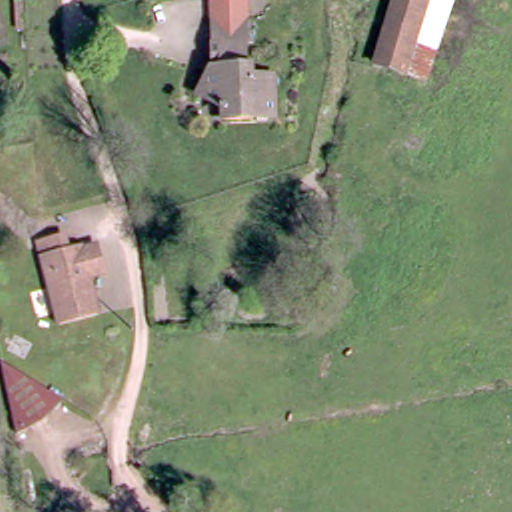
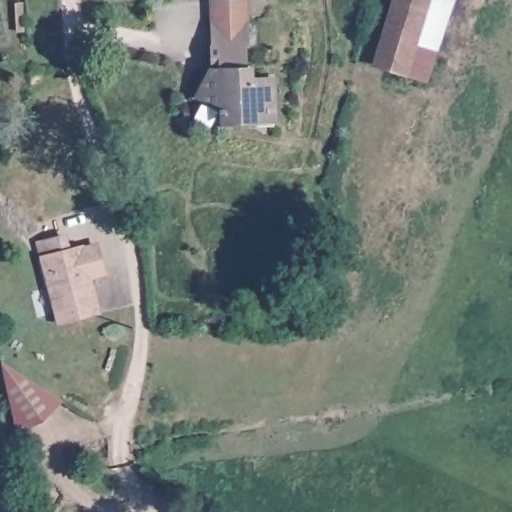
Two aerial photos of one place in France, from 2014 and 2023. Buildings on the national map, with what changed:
unchanged [(400,0),(456,0),(427,89),(377,73),(400,0)]
unchanged [(231,23),(233,19),(249,19),(250,47),(244,47),(245,71),(251,72),(251,84),(272,84),(275,122),(226,125),(225,116),(199,100),(212,72),(211,46),(211,22),(231,23)]
unchanged [(276,51),(279,55),(280,59),(279,64),(275,66),(272,68),(268,66),(264,63),(265,55),(272,50),(276,51)]
unchanged [(85,247),(86,252),(100,248),(107,275),(90,279),(97,309),(60,318),(46,258),(85,247)]
unchanged [(5,365),(63,401),(20,434),(5,365)]

